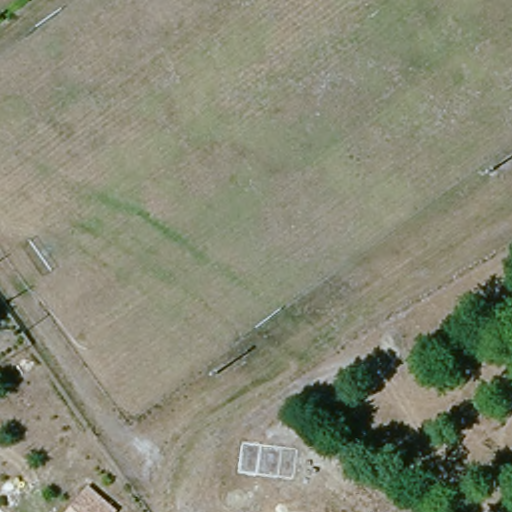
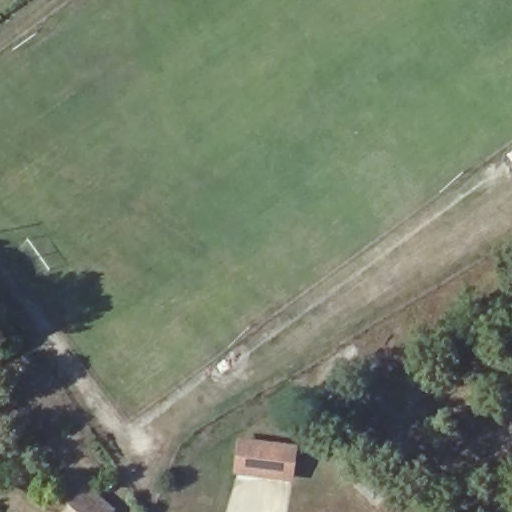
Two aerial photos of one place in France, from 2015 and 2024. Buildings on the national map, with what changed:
new [(236,474),(240,438),(300,443),(296,480),(236,474)]
unchanged [(88,485),(118,511),(117,512),(66,512),(88,485)]

